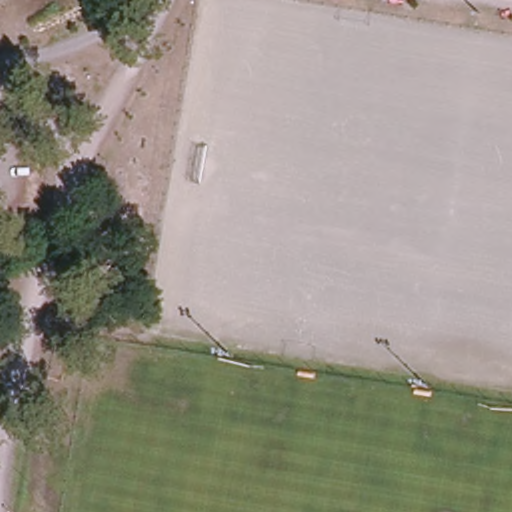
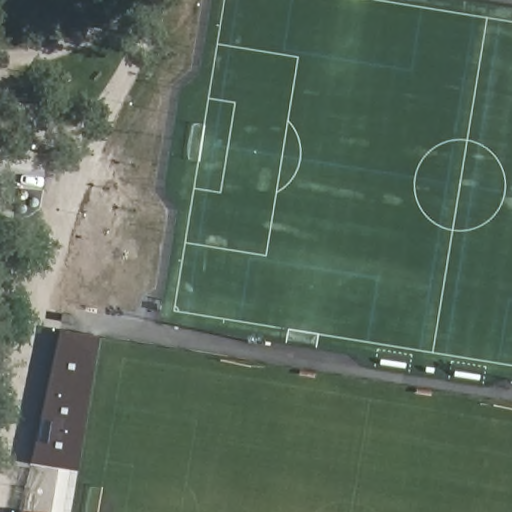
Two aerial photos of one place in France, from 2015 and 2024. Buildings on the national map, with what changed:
new [(99,336),(78,472),(30,464),(59,330),(99,336)]
new [(23,512),(19,512),(19,511),(23,512)]

